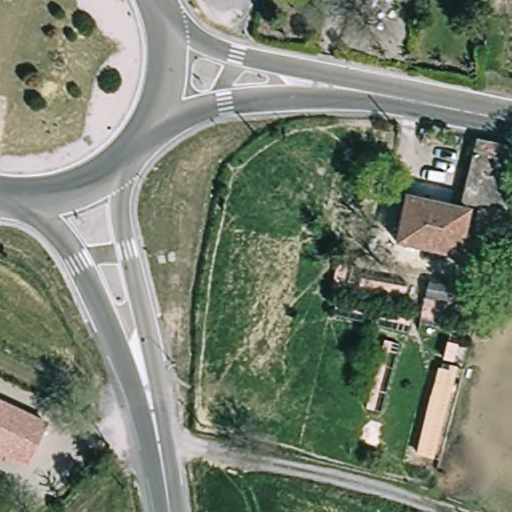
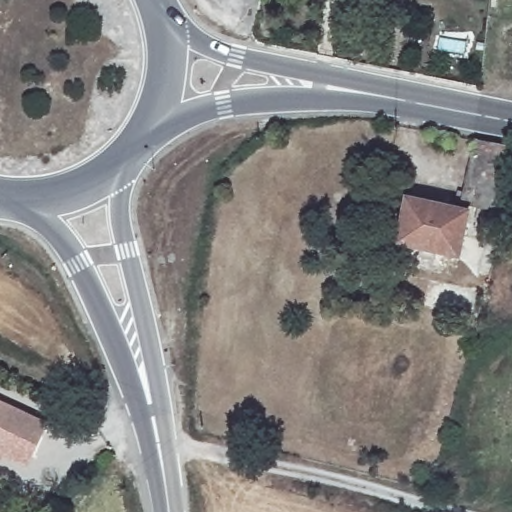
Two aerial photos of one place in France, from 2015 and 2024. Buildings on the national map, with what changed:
unchanged [(458,205),(470,144),(512,151),(512,176),(503,216),(458,205)]
unchanged [(411,206),(467,217),(458,260),(402,248),(411,206)]
unchanged [(425,301),(428,284),(456,291),(453,304),(447,332),(419,327),(425,301)]
unchanged [(433,462),(415,457),(440,361),(445,342),(458,344),(453,366),(457,369),(433,462)]
unchanged [(50,427),(28,469),(0,454),(0,402),(50,427)]

